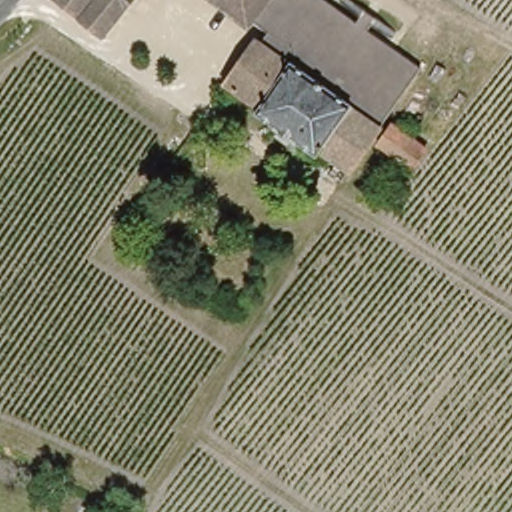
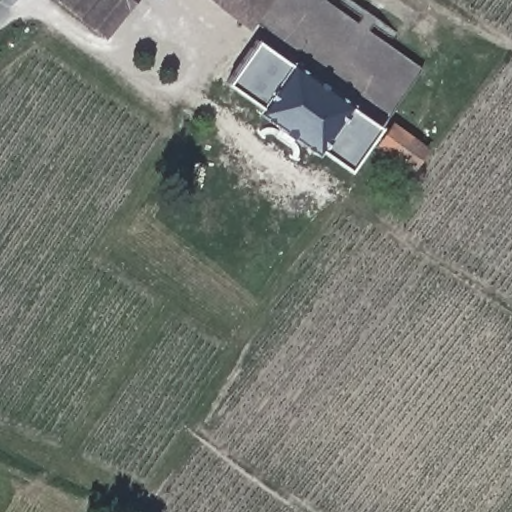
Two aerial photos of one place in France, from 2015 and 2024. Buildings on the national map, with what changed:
unchanged [(70,0),(117,0),(97,23),(70,0)]
unchanged [(229,0),(278,0),(265,19),(255,13),(251,16),(229,0)]
unchanged [(389,118),(382,126),(349,100),(349,98),(341,91),(291,53),(287,56),(262,39),(272,25),(265,19),(278,0),(323,0),(425,70),(389,118)]
unchanged [(393,40),(340,1),(340,0),(356,0),(399,31),(393,40)]
unchanged [(354,169),(320,145),(318,146),(300,131),(293,136),(272,120),(275,116),(254,101),(258,99),(225,76),(255,33),(262,39),(287,56),(291,53),(341,91),(349,98),(349,100),(382,126),(354,169)]
unchanged [(425,146),(411,163),(382,141),(396,124),(425,146)]

